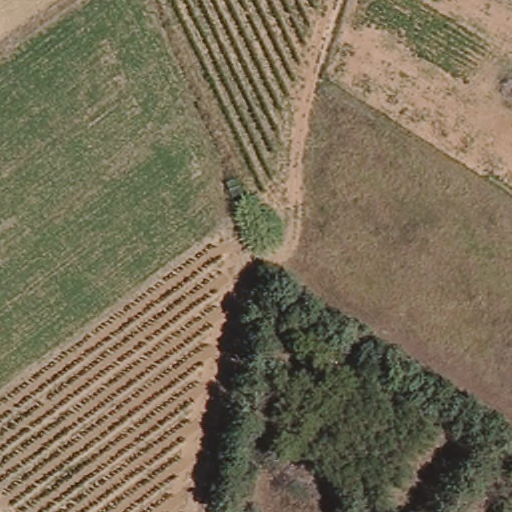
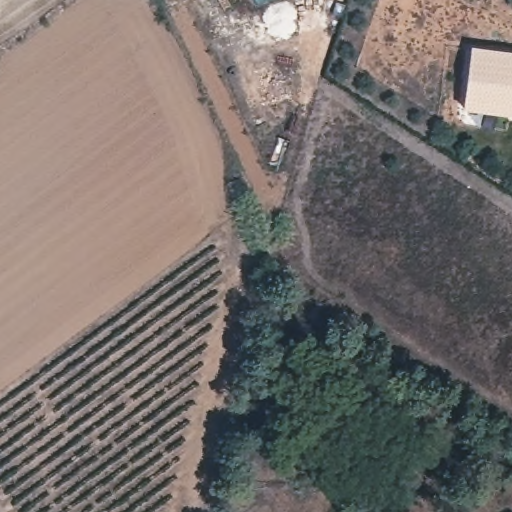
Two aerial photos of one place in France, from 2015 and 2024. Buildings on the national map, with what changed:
new [(255,0),(269,0),(258,5),(255,0)]
new [(471,50),(512,55),(512,116),(463,110),(471,50)]

